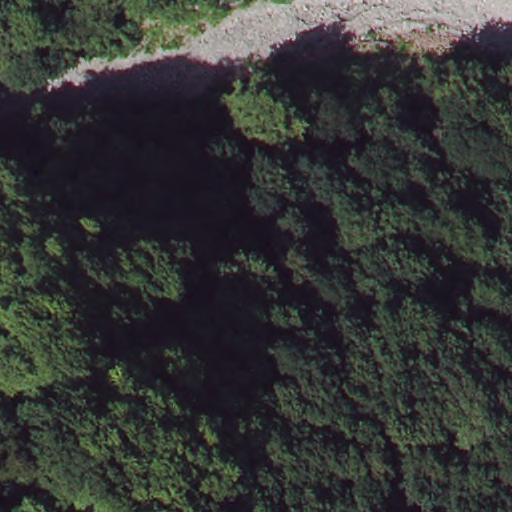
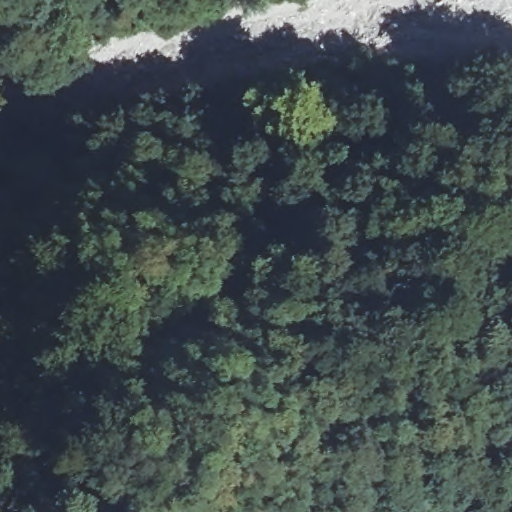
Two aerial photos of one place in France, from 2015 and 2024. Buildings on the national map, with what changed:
[]

